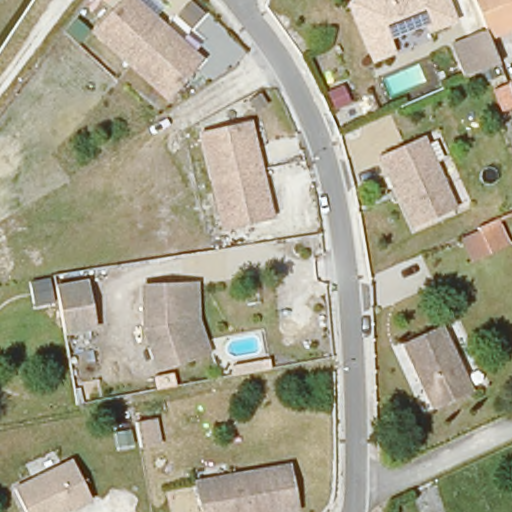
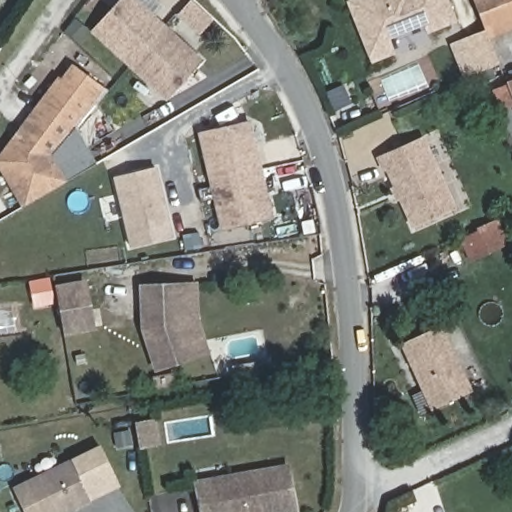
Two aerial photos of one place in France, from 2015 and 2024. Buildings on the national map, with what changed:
unchanged [(164,98),(94,35),(124,0),(137,0),(203,58),(164,98)]
unchanged [(422,25),(393,38),(398,49),(371,63),(343,0),(447,0),(455,21),(427,32),(422,25)]
unchanged [(512,0),(512,31),(495,39),(480,0),(512,0)]
unchanged [(490,44),(498,63),(462,76),(447,43),(483,26),(490,44)]
new [(67,181),(22,206),(0,168),(0,153),(59,76),(63,79),(75,65),(107,89),(52,155),(67,181)]
unchanged [(246,121),(270,218),(221,228),(200,133),(246,121)]
unchanged [(427,136),(462,214),(414,234),(377,160),(427,136)]
new [(158,170),(175,240),(134,251),(117,180),(158,170)]
unchanged [(97,330),(60,336),(51,285),(85,281),(97,330)]
unchanged [(197,314),(211,352),(154,371),(139,331),(135,284),(196,281),(197,314)]
unchanged [(442,328),(473,392),(440,409),(408,345),(442,328)]
unchanged [(163,445),(137,452),(130,421),(156,417),(163,445)]
unchanged [(61,512),(23,512),(11,486),(67,458),(89,498),(61,512)]
unchanged [(191,482),(288,461),(299,512),(198,512),(191,482)]

